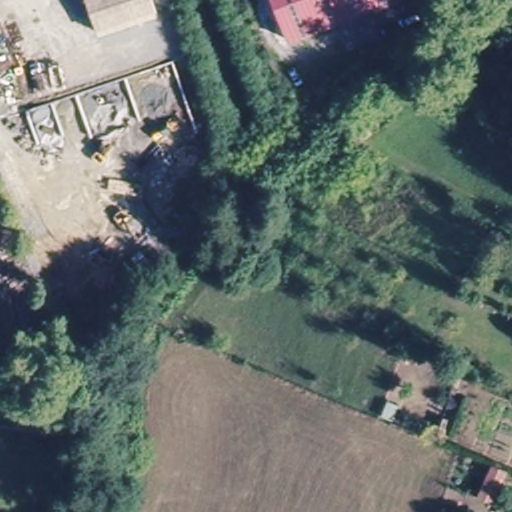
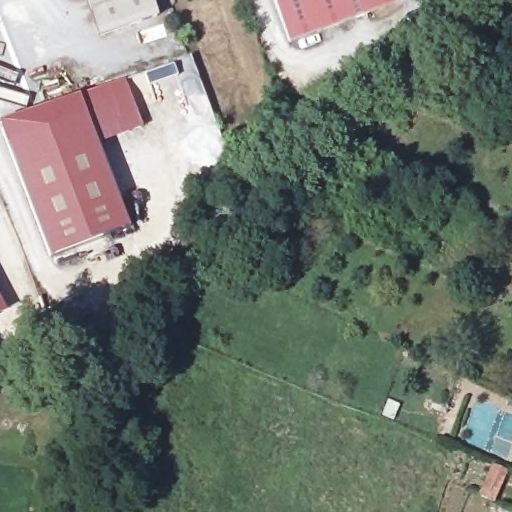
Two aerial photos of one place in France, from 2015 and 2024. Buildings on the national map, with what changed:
unchanged [(155,13),(127,25),(100,37),(85,0),(150,0),(155,13)]
unchanged [(288,44),(272,0),(400,0),(288,44)]
new [(186,78),(180,59),(191,55),(205,95),(188,101),(180,81),(186,78)]
new [(98,146),(85,114),(77,97),(125,81),(143,128),(98,146)]
new [(0,131),(0,129),(26,120),(25,116),(77,97),(85,114),(130,228),(48,257),(6,144),(0,131)]
unchanged [(0,314),(0,301),(5,311),(0,314)]

